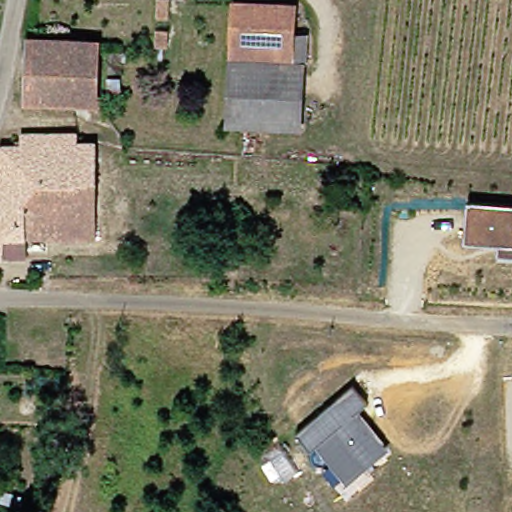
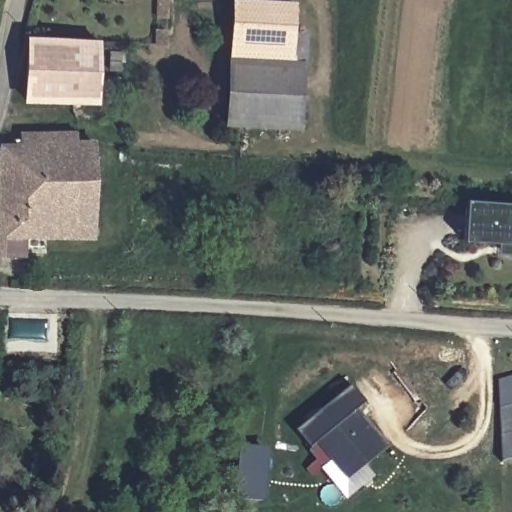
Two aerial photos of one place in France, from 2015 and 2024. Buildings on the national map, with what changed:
unchanged [(299,28),(313,30),(308,106),(277,104),(280,59),(232,57),(237,0),(301,0),(299,28)]
unchanged [(102,94),(34,93),(38,33),(105,34),(102,94)]
unchanged [(280,59),(277,104),(308,106),(306,132),(224,127),(232,57),(280,59)]
unchanged [(23,139),(24,125),(84,129),(83,143),(105,145),(99,239),(35,233),(31,257),(0,253),(0,192),(5,139),(23,139)]
unchanged [(498,253),(500,243),(465,240),(468,202),(512,205),(512,254),(498,253)]
new [(501,461),(498,381),(512,376),(512,458),(501,461)]
unchanged [(347,482),(316,443),(310,447),(298,432),(353,386),(367,404),(359,411),(387,447),(347,482)]
new [(265,502),(236,500),(239,447),(269,449),(265,502)]

